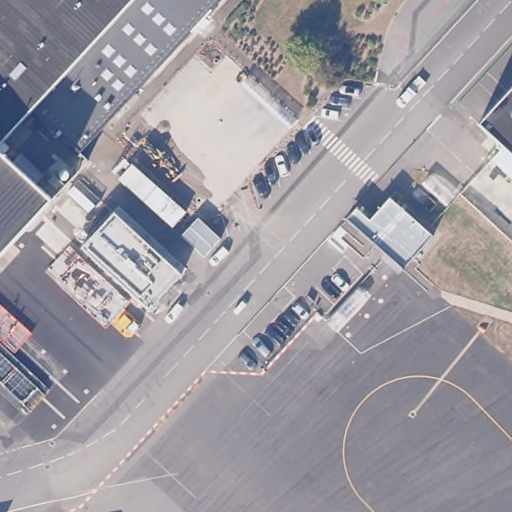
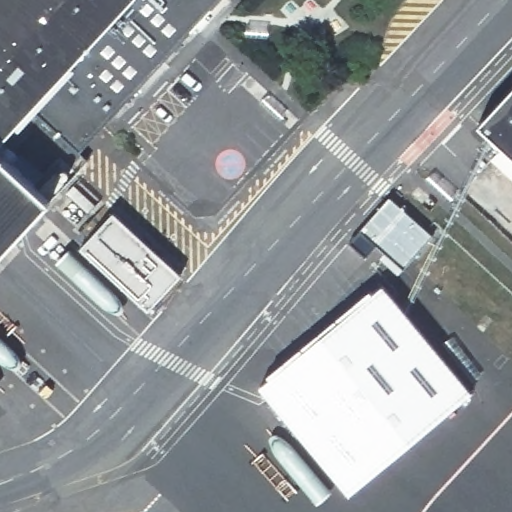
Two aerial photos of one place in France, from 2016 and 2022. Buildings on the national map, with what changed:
unchanged [(33,106),(0,142),(0,0),(218,0),(79,150),(33,106)]
unchanged [(480,122),(512,88),(512,152),(480,122)]
unchanged [(33,182),(51,199),(0,255),(0,151),(11,162),(19,154),(41,174),(33,182)]
unchanged [(435,235),(400,273),(382,260),(388,254),(357,230),(390,197),(435,235)]
unchanged [(182,273),(151,309),(78,247),(114,210),(182,273)]
new [(381,280),(473,391),(349,495),(258,385),(381,280)]

